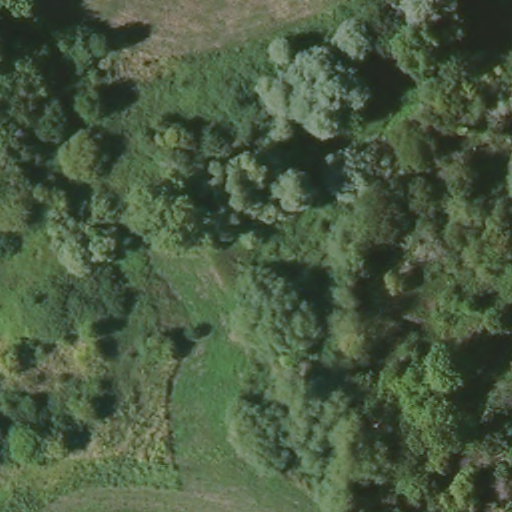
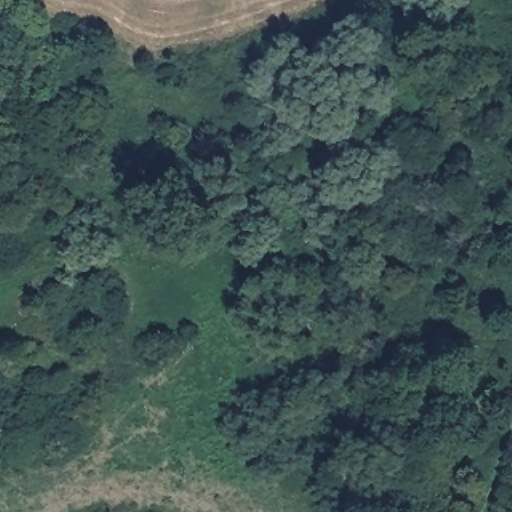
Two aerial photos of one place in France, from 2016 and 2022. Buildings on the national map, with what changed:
[]

